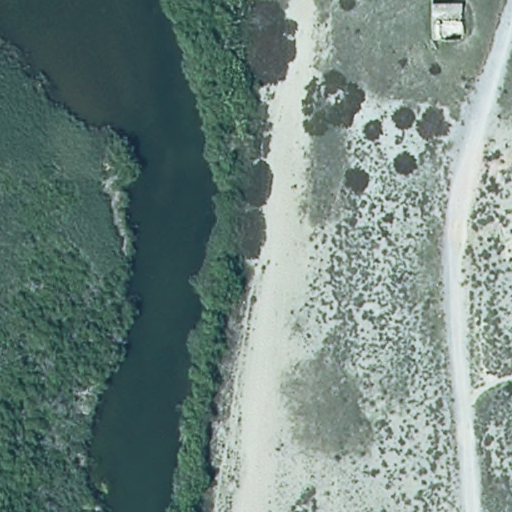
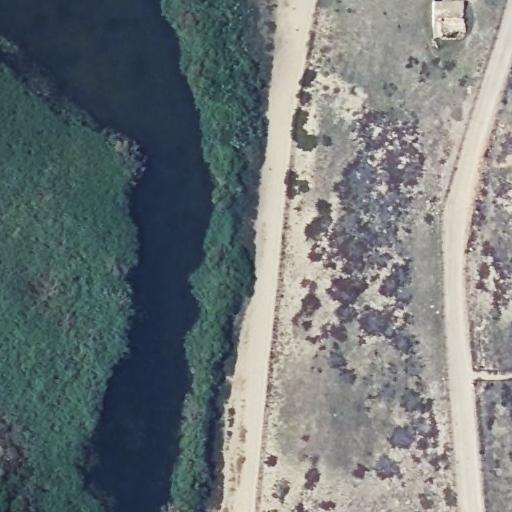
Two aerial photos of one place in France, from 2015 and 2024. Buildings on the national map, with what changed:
unchanged [(430,0),(461,0),(463,32),(432,35),(430,0)]

